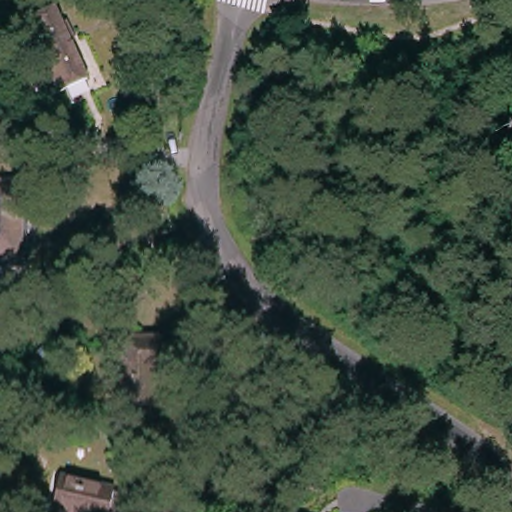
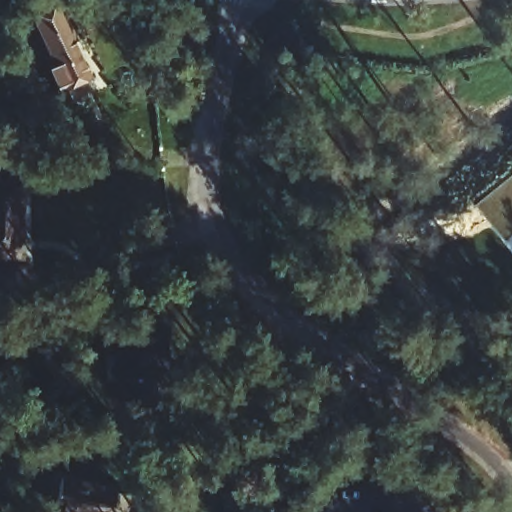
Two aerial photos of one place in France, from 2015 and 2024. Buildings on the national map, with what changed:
unchanged [(88,72),(51,89),(37,62),(48,57),(32,20),(55,10),(88,72)]
unchanged [(10,110),(0,107),(0,88),(15,92),(10,110)]
new [(504,242),(472,206),(512,174),(512,235),(504,242)]
unchanged [(27,258),(0,260),(0,183),(21,182),(27,258)]
unchanged [(202,330),(200,362),(188,361),(183,399),(142,396),(148,327),(202,330)]
unchanged [(112,463),(112,465),(127,468),(121,495),(106,492),(105,495),(50,483),(57,452),(112,463)]

